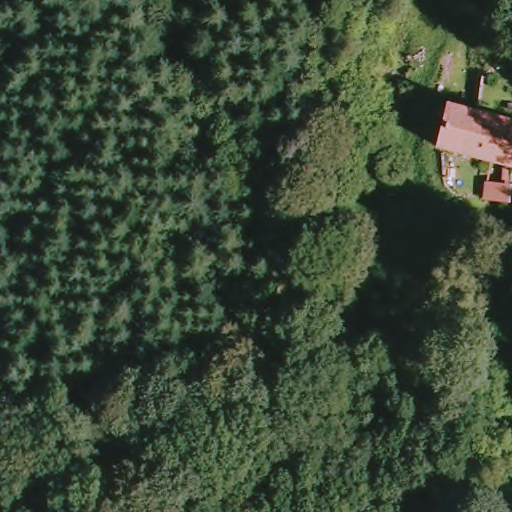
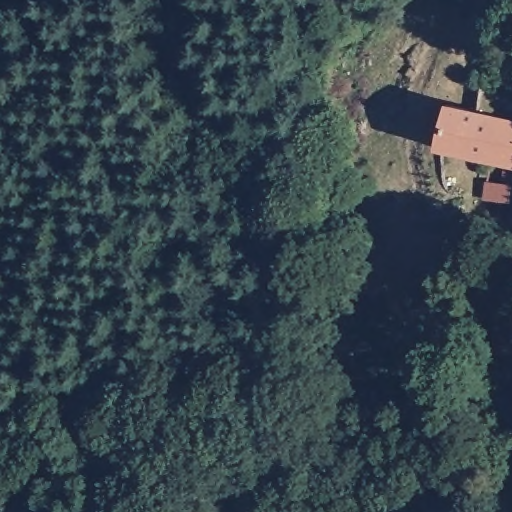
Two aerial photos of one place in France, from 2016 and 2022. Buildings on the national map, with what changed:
unchanged [(446,103),(512,118),(512,162),(438,144),(446,103)]

